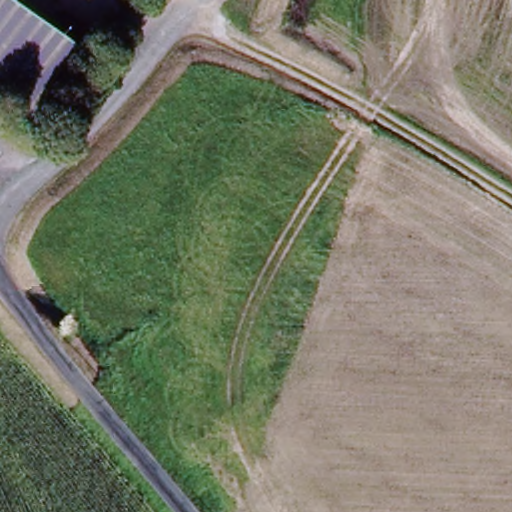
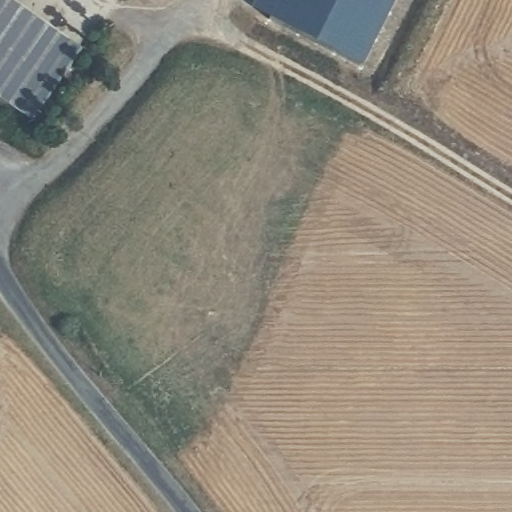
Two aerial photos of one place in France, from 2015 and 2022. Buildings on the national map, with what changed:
unchanged [(34,124),(0,100),(0,0),(13,0),(89,50),(34,124)]
new [(256,0),(391,0),(363,65),(253,6),(256,0)]

